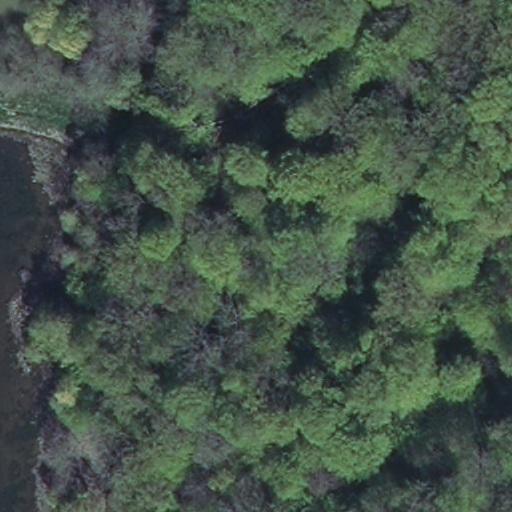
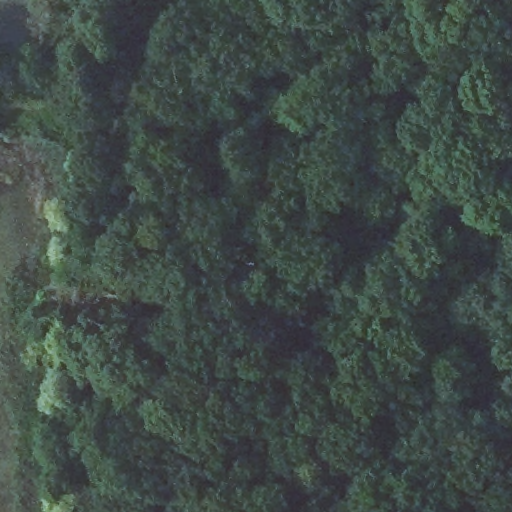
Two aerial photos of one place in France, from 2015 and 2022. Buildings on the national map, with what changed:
[]

